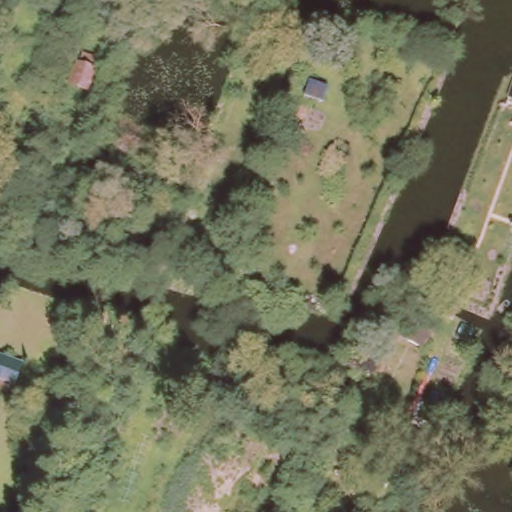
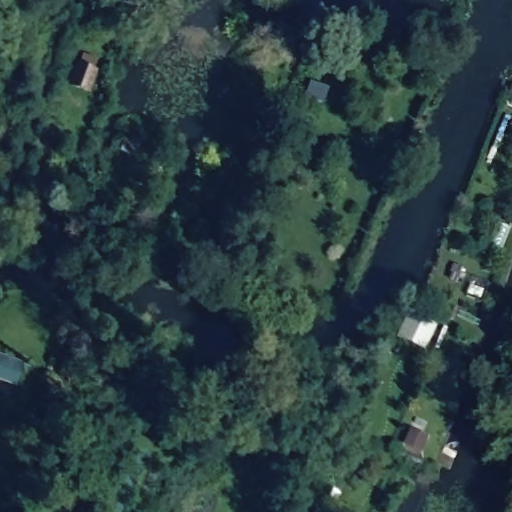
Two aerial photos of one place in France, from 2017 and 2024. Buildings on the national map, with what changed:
unchanged [(77,60),(97,67),(88,93),(67,87),(77,60)]
unchanged [(304,99),(308,85),(326,90),(322,104),(304,99)]
unchanged [(512,88),(512,96),(510,95),(512,88)]
unchanged [(130,138),(145,145),(140,159),(124,153),(130,138)]
unchanged [(140,169),(165,181),(157,196),(133,185),(140,169)]
unchanged [(0,377),(0,355),(23,362),(16,382),(0,377)]

